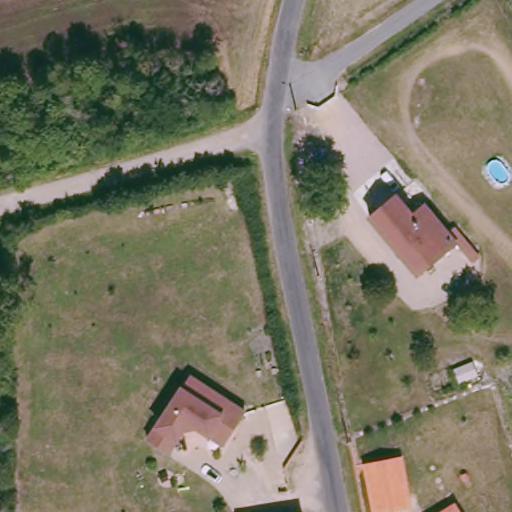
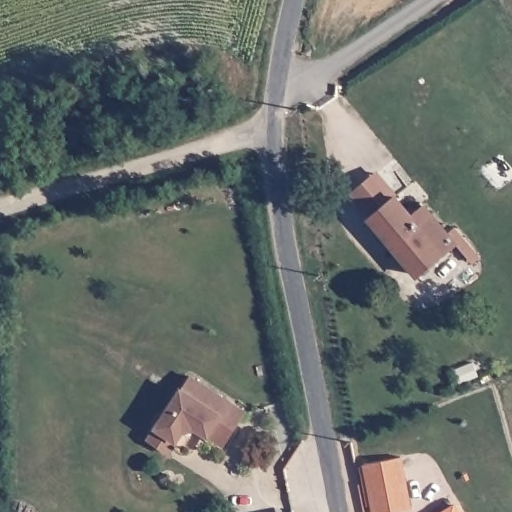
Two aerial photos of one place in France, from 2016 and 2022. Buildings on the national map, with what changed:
unchanged [(396,190),(412,210),(425,203),(447,228),(455,224),(464,236),(458,240),(445,251),(417,276),(367,215),(396,190)]
unchanged [(207,433),(195,425),(182,428),(167,451),(147,438),(188,374),(244,410),(232,430),(223,443),(207,433)]
unchanged [(411,506),(384,512),(371,512),(361,464),(402,458),(411,506)]
unchanged [(457,512),(444,512),(454,506),(457,512)]

